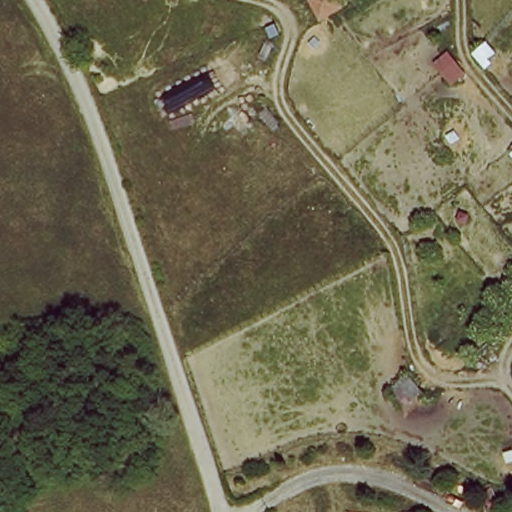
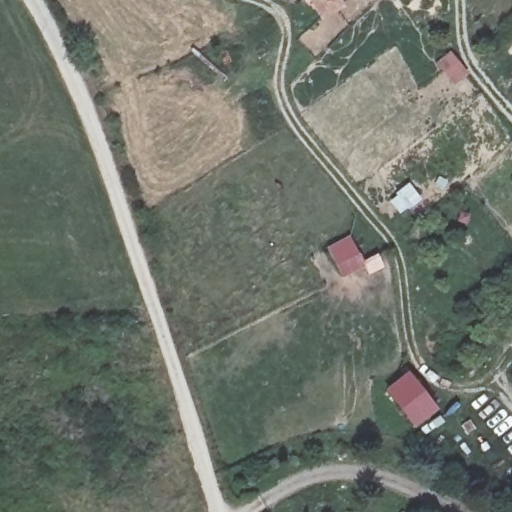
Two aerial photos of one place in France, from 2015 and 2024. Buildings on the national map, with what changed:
new [(364,267),(341,280),(324,251),(347,238),(364,267)]
new [(413,427),(385,390),(408,371),(437,410),(413,427)]

